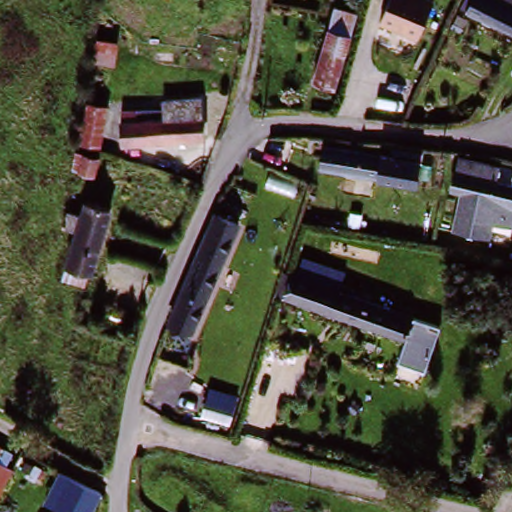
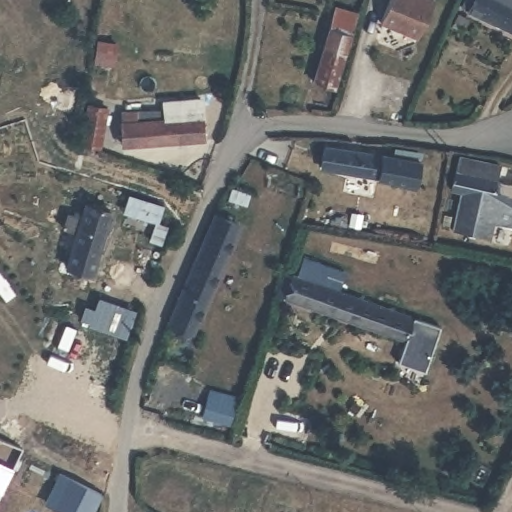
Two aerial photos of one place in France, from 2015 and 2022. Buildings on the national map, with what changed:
unchanged [(424,25),(419,37),(412,34),(381,21),(388,0),(434,0),(424,25)]
unchanged [(467,0),(512,0),(512,28),(465,4),(467,0)]
unchanged [(319,47),(328,5),(355,9),(346,52),(319,47)]
unchanged [(346,52),(340,87),(312,82),(319,47),(346,52)]
unchanged [(121,127),(164,122),(166,122),(163,101),(200,96),(203,117),(205,136),(123,146),(121,127)]
unchanged [(82,111),(77,142),(64,141),(71,107),(82,111)]
unchanged [(378,179),(314,166),(317,147),(381,160),(378,179)]
unchanged [(383,154),(422,162),(418,187),(378,179),(380,169),(381,160),(383,154)]
unchanged [(458,159),(498,165),(497,181),(512,184),(512,204),(453,195),(458,159)]
unchanged [(88,167),(85,182),(67,176),(70,162),(88,167)]
unchanged [(491,223),(489,230),(507,233),(506,249),(489,246),(491,239),(447,230),(453,195),(512,205),(512,227),(491,223)]
unchanged [(62,250),(67,232),(80,236),(85,217),(109,224),(89,292),(66,286),(75,254),(62,250)]
unchanged [(234,227),(190,331),(167,322),(211,218),(234,227)]
unchanged [(431,322),(424,345),(287,300),(293,277),(431,322)]
unchanged [(230,403),(225,420),(200,412),(204,396),(230,403)]
unchanged [(1,465),(13,472),(6,486),(0,499),(0,449),(7,452),(1,465)]
unchanged [(93,512),(61,512),(42,502),(54,473),(101,495),(93,512)]

